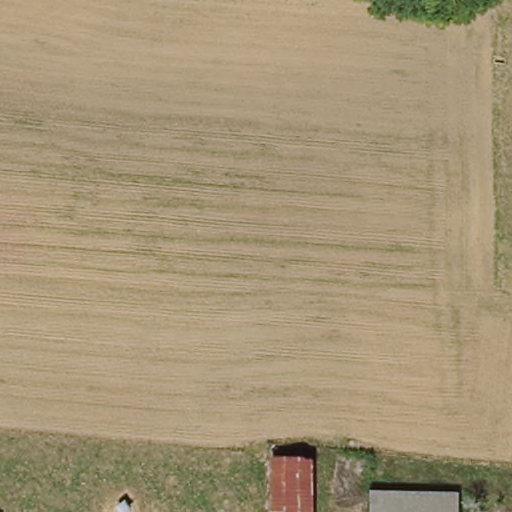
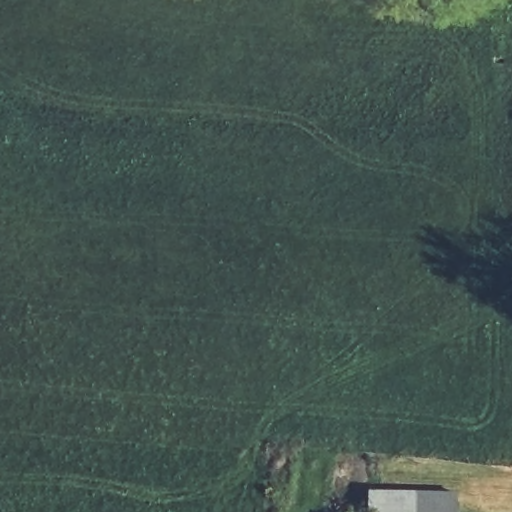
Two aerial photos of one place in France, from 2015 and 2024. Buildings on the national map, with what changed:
demolished [(268,512),(267,455),(310,456),(311,512),(268,512)]
unchanged [(452,495),(452,512),(369,512),(369,494),(452,495)]

